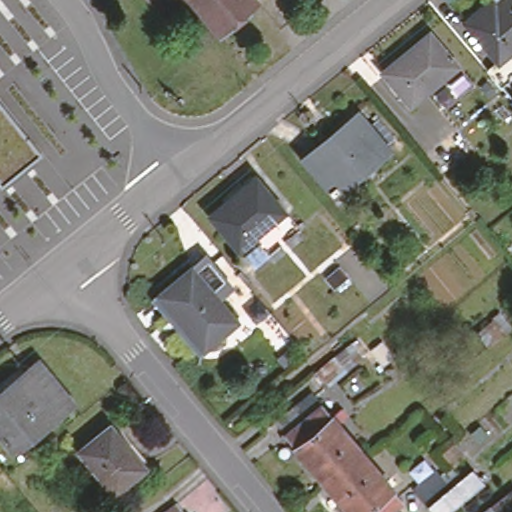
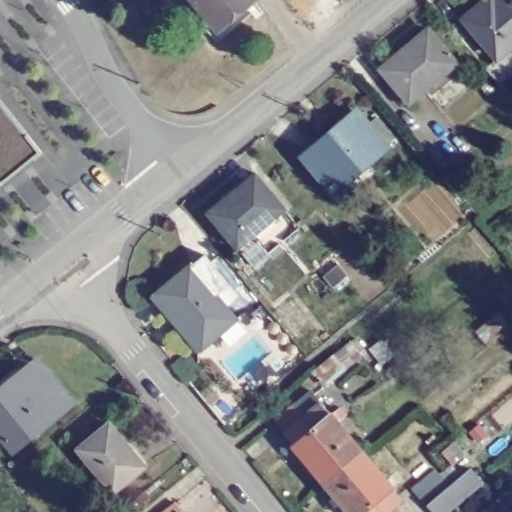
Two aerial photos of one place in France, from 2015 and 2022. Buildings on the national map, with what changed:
unchanged [(194,0),(248,0),(216,26),(194,0)]
unchanged [(462,14),(479,0),(484,5),(489,0),(512,0),(512,38),(494,53),(462,14)]
unchanged [(452,60),(405,98),(378,65),(425,27),(452,60)]
unchanged [(40,154),(2,185),(0,183),(0,104),(40,154)]
unchanged [(381,145),(336,182),(337,184),(329,190),(300,154),(316,140),(316,141),(354,111),(381,145)]
unchanged [(281,212),(234,250),(207,216),(226,201),(223,198),(251,175),(281,212)]
unchanged [(33,260),(21,245),(48,224),(61,238),(33,260)]
unchanged [(233,322),(201,348),(157,294),(189,268),(233,322)]
unchanged [(66,400),(9,446),(0,434),(0,385),(33,358),(66,400)]
unchanged [(301,452),(291,440),(282,428),(300,413),(318,398),(328,410),(338,423),(339,422),(369,457),(350,473),(330,490),(301,453),(301,452)]
unchanged [(144,468),(114,492),(80,451),(111,426),(144,468)]
unchanged [(330,490),(350,473),(369,457),(399,495),(409,507),(403,512),(348,512),(330,490)]
unchanged [(428,507),(424,503),(414,490),(449,461),(464,477),(428,507)]
unchanged [(176,506),(181,512),(170,512),(176,506)]
unchanged [(497,512),(486,512),(493,507),(497,512)]

